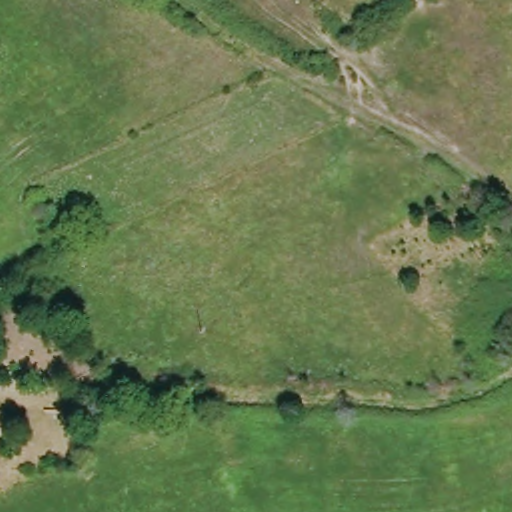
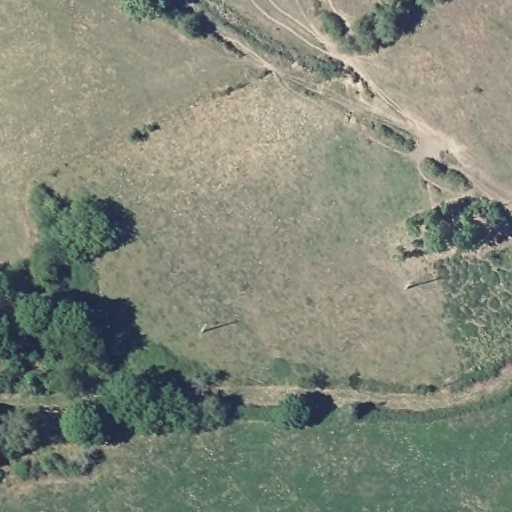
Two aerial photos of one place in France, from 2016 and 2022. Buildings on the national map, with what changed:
unchanged [(0,439),(0,413),(3,413),(4,439),(0,439)]

